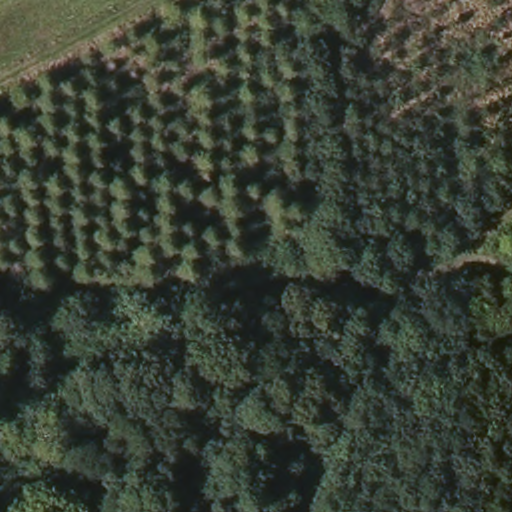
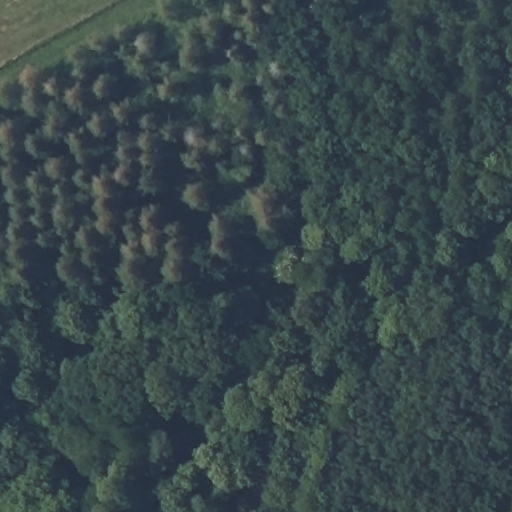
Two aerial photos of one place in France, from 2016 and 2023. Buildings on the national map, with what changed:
[]

